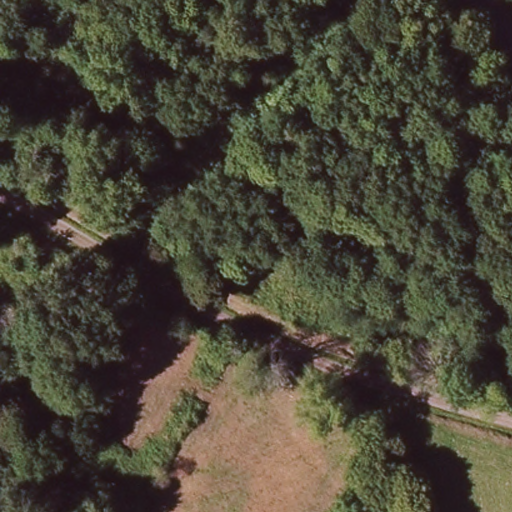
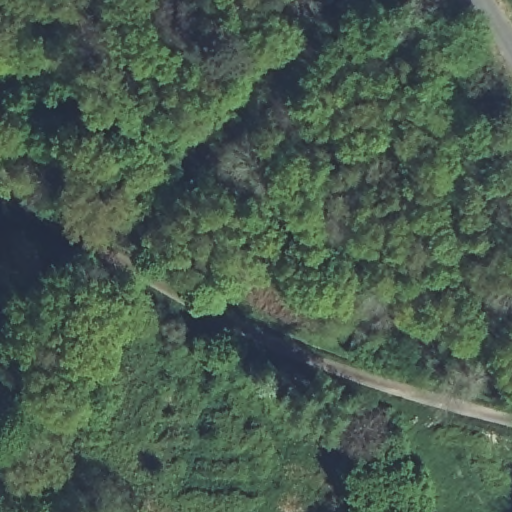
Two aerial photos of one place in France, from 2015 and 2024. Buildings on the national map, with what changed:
[]

